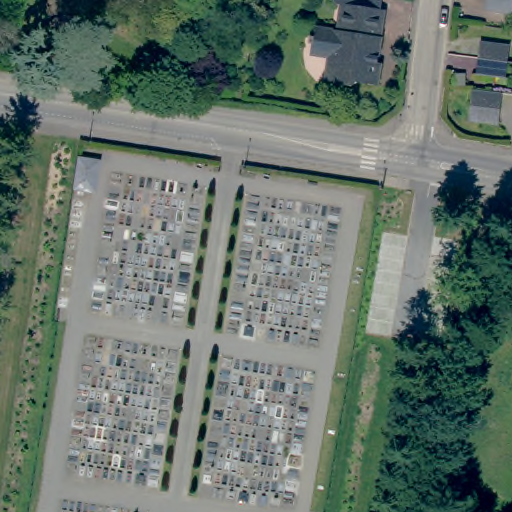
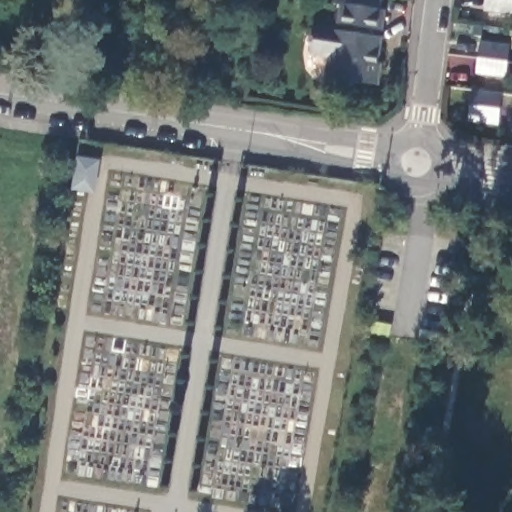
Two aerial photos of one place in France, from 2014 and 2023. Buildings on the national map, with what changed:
unchanged [(376,3),(380,5),(376,30),(373,58),(376,58),(373,74),(366,79),(352,76),(346,81),(327,77),(328,60),(322,50),(305,48),(307,38),(303,37),(305,30),(307,31),(309,21),(332,25),(335,0),(377,0),(376,3)]
unchanged [(492,0),(512,0),(512,14),(491,11),(492,0)]
unchanged [(485,57),(487,41),(512,45),(512,75),(512,79),(482,75),(485,57)]
unchanged [(510,92),(506,122),(477,119),(480,89),(510,92)]
unchanged [(100,163),(96,189),(79,186),(84,160),(100,163)]

